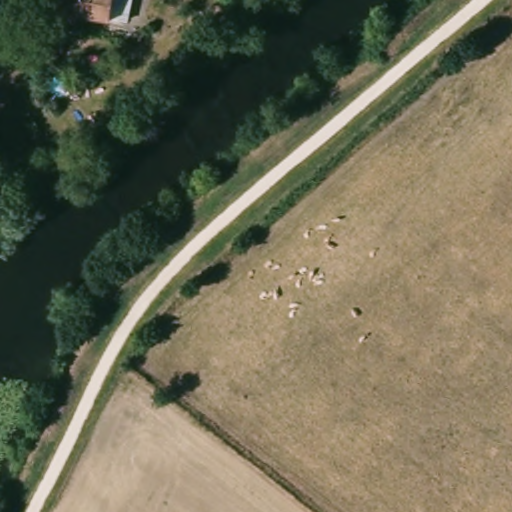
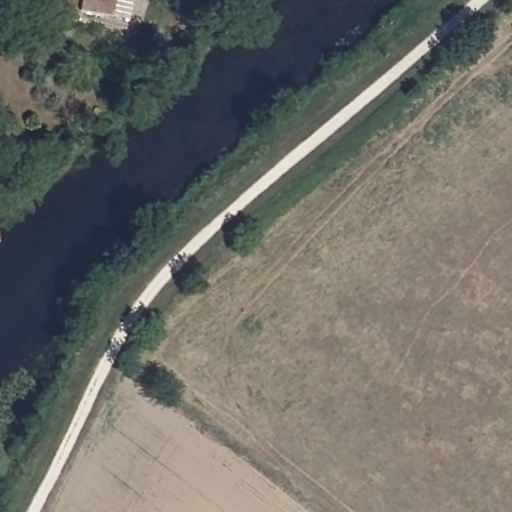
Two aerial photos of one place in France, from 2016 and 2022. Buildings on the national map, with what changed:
unchanged [(110,20),(77,13),(75,22),(41,15),(44,0),(132,0),(127,23),(110,20)]
unchanged [(67,46),(59,54),(51,47),(59,38),(67,46)]

